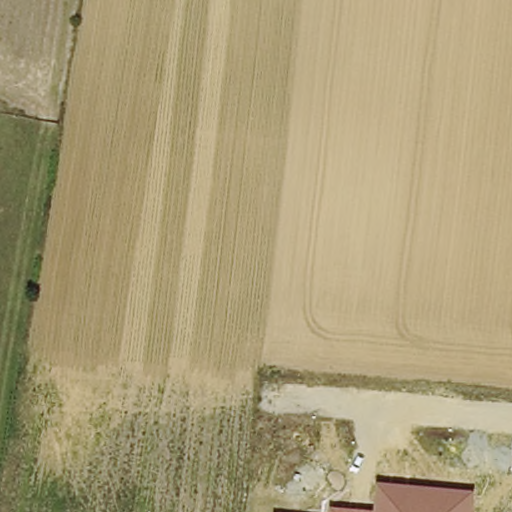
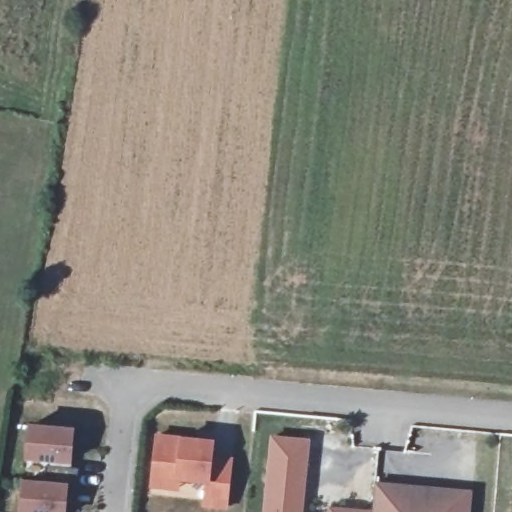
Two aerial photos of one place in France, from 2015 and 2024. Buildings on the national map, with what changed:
new [(23,479),(39,480),(41,462),(25,461),(29,424),(79,426),(76,465),(72,464),(72,470),(75,470),(71,483),(68,512),(20,512),(23,479)]
new [(182,436),(218,440),(217,456),(236,458),(231,511),(204,507),(205,484),(180,481),(182,491),(151,488),(154,434),(182,436)]
new [(313,438),(305,512),(263,512),(271,437),(313,438)]
unchanged [(331,505),(374,508),(375,480),(474,489),(472,512),(330,512),(331,505)]

